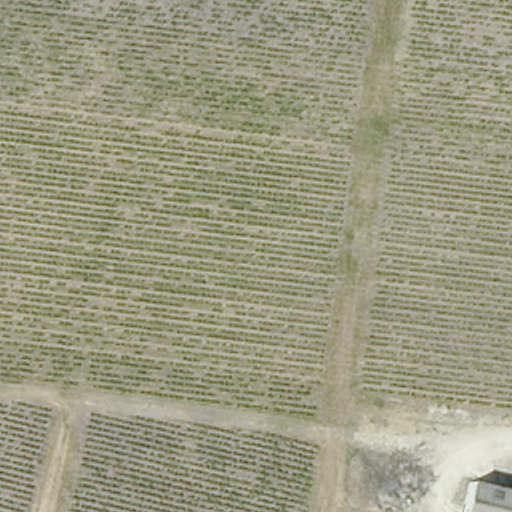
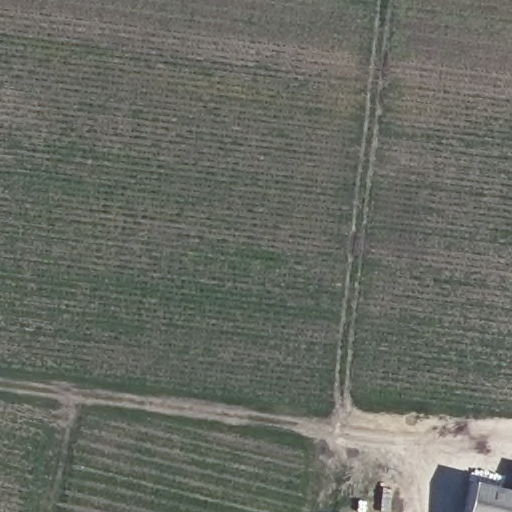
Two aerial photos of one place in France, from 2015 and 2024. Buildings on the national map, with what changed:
unchanged [(480,490),(512,496),(512,512),(466,512),(471,488),(480,490)]

